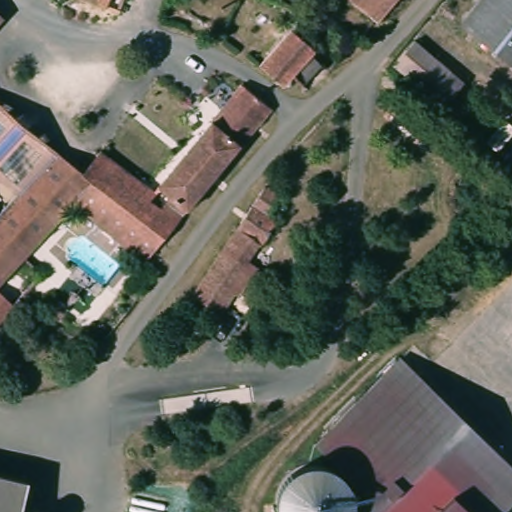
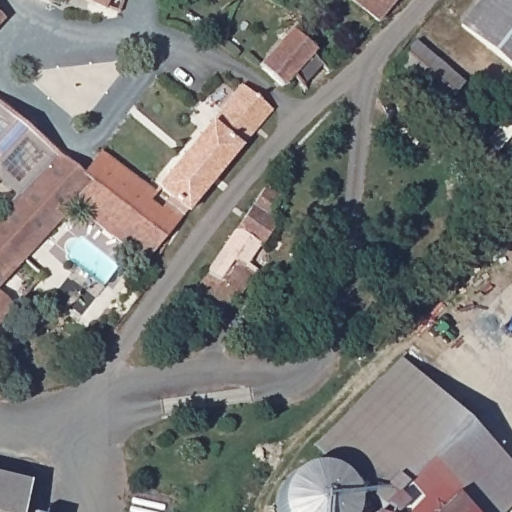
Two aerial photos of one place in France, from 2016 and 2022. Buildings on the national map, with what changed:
unchanged [(86,0),(122,0),(116,13),(86,0)]
unchanged [(346,0),(390,0),(373,21),(346,0)]
unchanged [(457,28),(480,0),(512,0),(512,74),(457,28)]
unchanged [(286,82),(262,61),(290,31),(314,51),(286,82)]
unchanged [(414,41),(463,84),(443,106),(394,64),(414,41)]
unchanged [(239,86),(269,110),(187,209),(159,188),(239,86)]
unchanged [(16,197),(0,183),(0,104),(57,153),(16,197)]
unchanged [(57,153),(60,155),(83,174),(101,153),(125,171),(154,194),(159,188),(187,209),(183,214),(144,262),(73,206),(0,284),(0,215),(0,214),(57,153)]
unchanged [(232,299),(220,315),(192,296),(265,189),(280,200),(268,217),(277,223),(274,228),(287,237),(277,250),(264,241),(260,245),(267,250),(246,279),(232,299)]
unchanged [(0,291),(16,304),(0,321),(0,291)]
unchanged [(352,501),(366,488),(320,444),(402,359),(512,467),(512,496),(497,512),(364,512),(352,501)]
unchanged [(349,503),(349,504),(349,505),(349,506),(349,507),(349,508),(349,509),(349,510),(349,511),(348,512),(272,512),(271,511),(271,510),(270,509),(270,508),(270,507),(270,506),(270,505),(270,504),(270,503),(270,499),(270,498),(270,497),(270,496),(270,494),(271,494),(271,493),(271,492),(271,491),(272,491),(272,490),(272,489),(273,488),(273,487),(273,486),(274,486),(274,484),(274,483),(275,482),(276,481),(276,480),(277,479),(278,478),(278,477),(279,477),(279,476),(280,475),(280,474),(281,474),(282,474),(282,473),(283,473),(283,472),(284,472),(284,471),(285,469),(286,469),(287,469),(288,469),(288,468),(289,468),(289,467),(290,467),(291,466),(292,466),(293,465),(294,465),(294,464),(295,464),(297,464),(298,463),(299,463),(300,463),(301,463),(302,462),(303,462),(305,462),(308,462),(309,462),(312,462),(313,462),(314,462),(315,462),(317,462),(318,462),(319,463),(320,463),(321,463),(322,463),(323,464),(324,464),(325,464),(326,464),(327,465),(328,466),(329,466),(329,467),(330,467),(332,468),(333,469),(334,469),(334,470),(336,471),(337,472),(338,473),(339,474),(340,475),(340,476),(341,477),(342,477),(342,478),(343,478),(343,479),(344,479),(344,481),(344,482),(345,482),(345,483),(346,484),(347,486),(347,487),(348,488),(348,489),(349,491),(349,492),(349,493),(349,494),(349,496),(349,497),(349,498),(349,499),(349,500),(350,501),(350,503),(349,503)]
unchanged [(0,475),(29,482),(22,512),(0,512),(0,475)]

